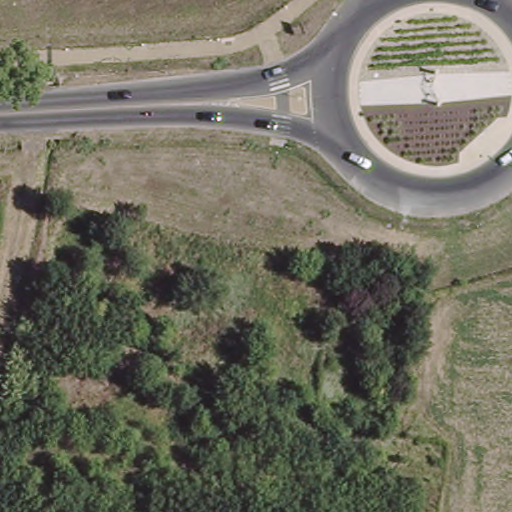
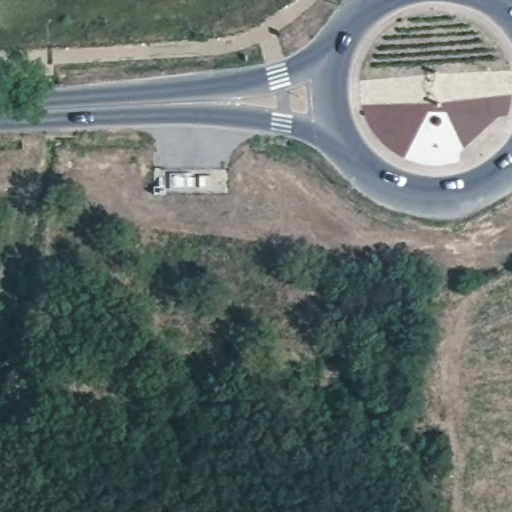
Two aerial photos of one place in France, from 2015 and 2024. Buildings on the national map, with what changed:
unchanged [(434,154),(432,169),(417,167),(419,151),(434,154)]

